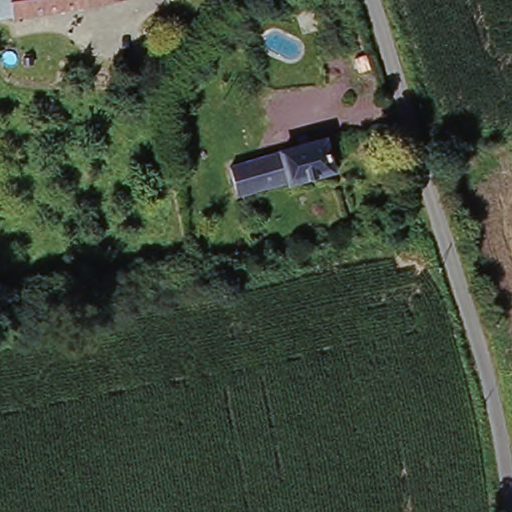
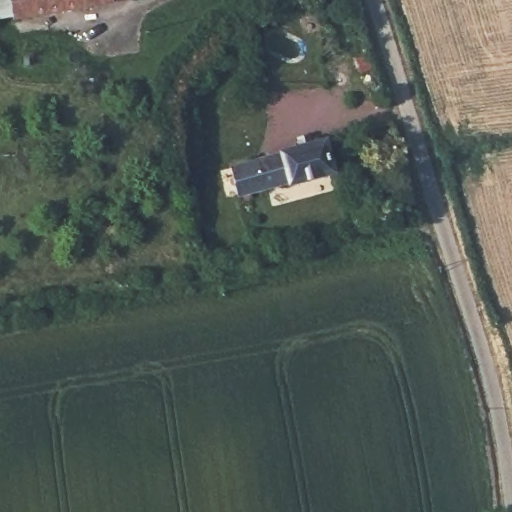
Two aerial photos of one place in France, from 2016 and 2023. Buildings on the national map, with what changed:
unchanged [(15,20),(12,0),(126,0),(126,1),(15,20)]
unchanged [(306,150),(304,140),(313,138),(316,148),(329,145),(335,176),(240,196),(234,165),(306,150)]

